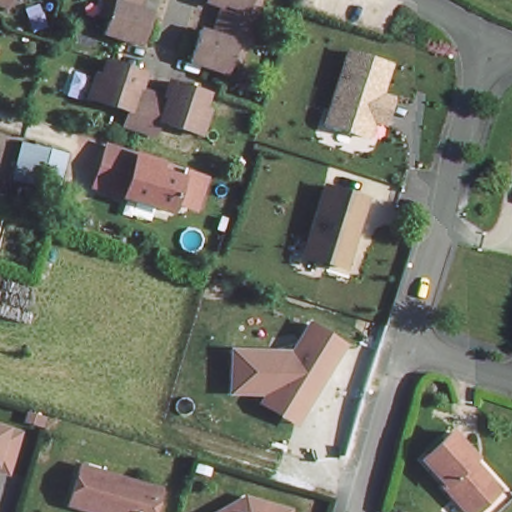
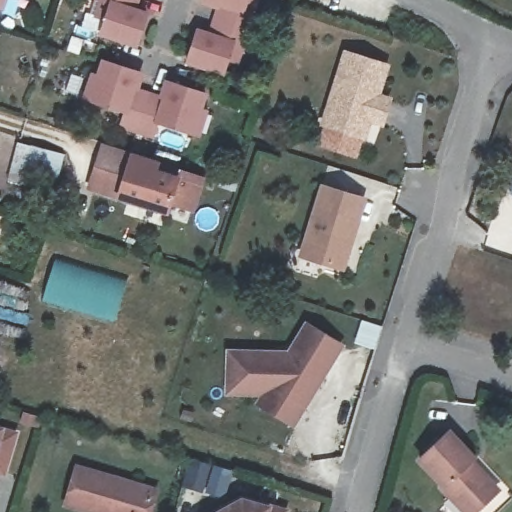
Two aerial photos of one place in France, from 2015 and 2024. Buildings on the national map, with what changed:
unchanged [(1,0),(0,4),(0,0),(1,0)]
unchanged [(135,0),(132,8),(145,12),(134,43),(97,32),(102,17),(92,12),(96,0),(135,0)]
unchanged [(222,67),(185,55),(196,25),(208,27),(217,0),(256,0),(254,9),(258,10),(247,42),(242,41),(237,56),(227,53),(222,67)]
unchanged [(372,120),(369,120),(364,136),(322,124),(344,51),(387,65),(377,95),(388,99),(384,115),(382,123),(372,120)]
unchanged [(198,135),(191,131),(155,120),(149,135),(118,124),(122,110),(88,97),(81,95),(89,71),(96,74),(101,56),(137,68),(132,85),(163,94),(168,78),(205,90),(199,107),(206,110),(198,135)]
unchanged [(10,171),(21,135),(65,150),(55,185),(10,171)]
unchanged [(189,175),(186,187),(174,184),(166,214),(117,200),(127,170),(103,162),(107,148),(189,175)]
unchanged [(338,260),(300,249),(322,180),(363,194),(349,243),(343,262),(338,260)]
new [(124,285),(119,303),(110,303),(107,315),(43,293),(55,262),(110,277),(124,285)]
unchanged [(294,428),(255,405),(259,397),(227,396),(226,348),(289,349),(309,323),(345,345),(294,428)]
unchanged [(485,495),(468,510),(439,480),(441,478),(418,453),(449,426),(471,451),(467,456),(474,463),(478,463),(492,479),(497,485),(485,495)]
unchanged [(15,436),(3,475),(0,473),(0,431),(15,436)]
unchanged [(158,491),(152,512),(103,512),(91,512),(66,504),(77,466),(158,491)]
unchanged [(289,505),(287,512),(205,512),(244,491),(289,505)]

